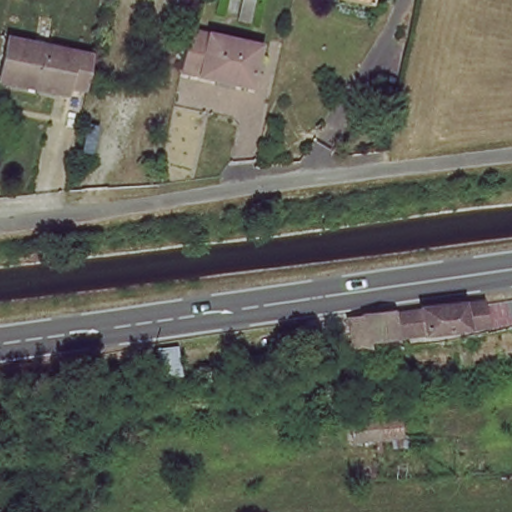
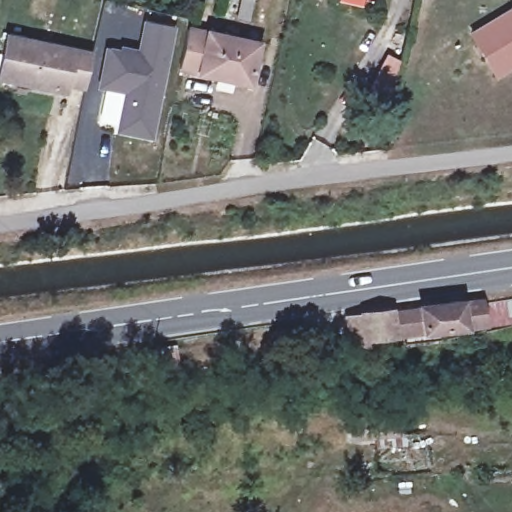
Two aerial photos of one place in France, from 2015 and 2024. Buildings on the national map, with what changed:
new [(468,34),(512,7),(512,68),(495,79),(468,34)]
new [(150,139),(119,133),(127,92),(101,87),(109,50),(122,52),(123,49),(141,52),(146,23),(172,29),(150,139)]
unchanged [(262,42),(253,86),(179,70),(188,27),(262,42)]
unchanged [(67,82),(65,90),(2,75),(10,38),(93,55),(86,87),(67,82)]
unchanged [(481,327),(358,344),(354,321),(477,303),(481,327)]
unchanged [(386,427),(386,440),(363,441),(361,429),(386,427)]

